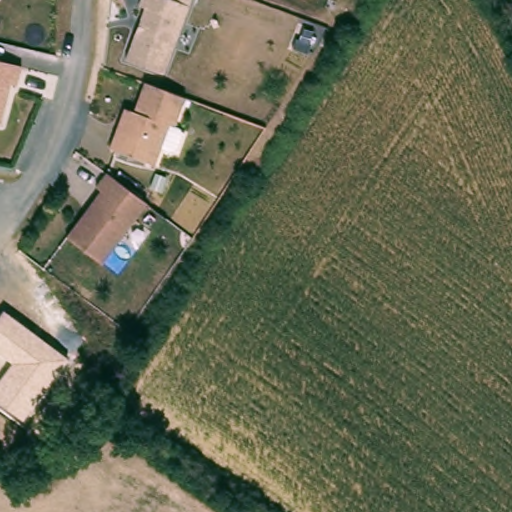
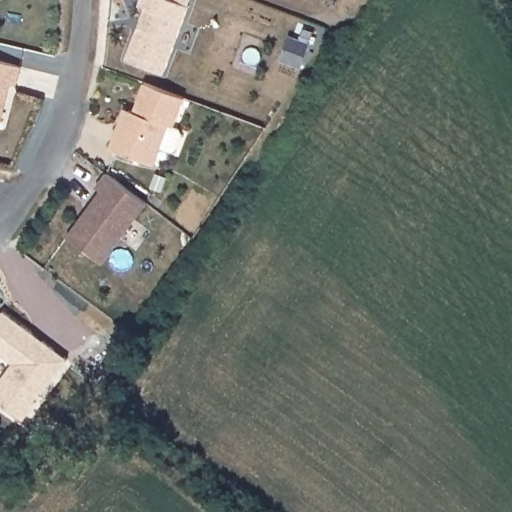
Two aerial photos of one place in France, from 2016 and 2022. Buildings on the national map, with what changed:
unchanged [(189,5),(164,73),(125,58),(142,7),(137,5),(139,0),(176,0),(189,5)]
unchanged [(22,65),(16,86),(11,83),(1,123),(0,123),(0,60),(22,65)]
unchanged [(185,96),(174,128),(167,126),(154,165),(107,148),(122,106),(132,110),(144,82),(185,96)]
unchanged [(136,224),(121,244),(102,268),(67,242),(87,216),(102,195),(97,192),(107,178),(147,208),(136,224)]
unchanged [(0,402),(0,381),(12,364),(0,355),(0,317),(5,311),(70,360),(24,421),(0,402)]

